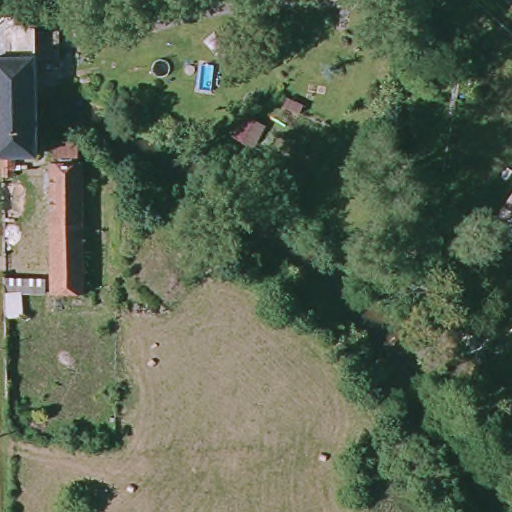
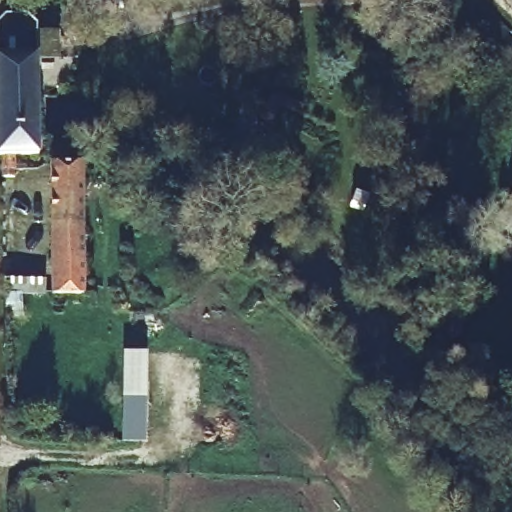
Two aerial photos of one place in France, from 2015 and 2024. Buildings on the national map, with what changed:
unchanged [(13,10),(27,20),(27,26),(42,26),(49,26),(49,70),(45,70),(29,70),(28,76),(28,136),(28,151),(0,152),(0,9),(13,10)]
unchanged [(76,303),(44,304),(42,173),(42,166),(42,151),(74,151),(76,303)]
unchanged [(12,156),(18,156),(18,163),(10,163),(10,156),(12,156)]
unchanged [(11,173),(19,173),(20,241),(12,241),(11,173)]
unchanged [(512,225),(495,214),(512,187),(512,224),(512,225)]
unchanged [(39,263),(38,291),(0,294),(0,265),(39,263)]
new [(122,440),(123,350),(147,351),(146,440),(122,440)]

